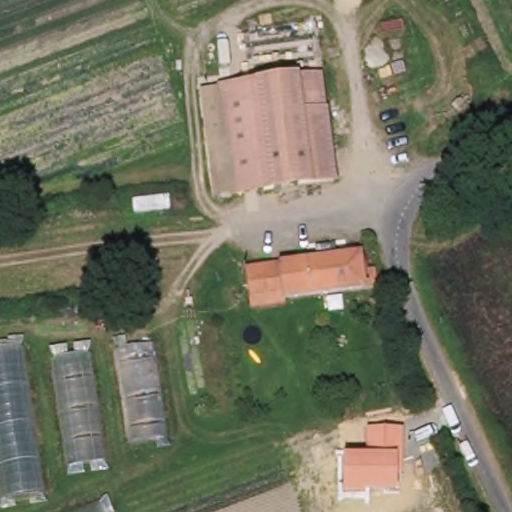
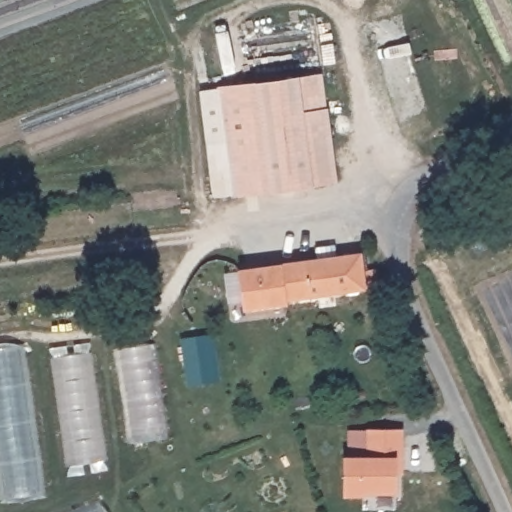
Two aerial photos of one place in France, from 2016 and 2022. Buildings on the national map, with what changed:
unchanged [(344,182),(237,197),(222,90),(329,75),(344,182)]
unchanged [(341,295),(251,308),(246,272),(321,260),(319,249),(338,246),(341,257),(363,254),(366,269),(374,267),(377,289),(341,295)]
unchanged [(172,436),(134,442),(121,348),(155,342),(172,436)]
unchanged [(5,497),(0,460),(0,350),(28,346),(46,490),(5,497)]
unchanged [(108,461),(74,466),(57,357),(93,352),(108,461)]
unchanged [(337,485),(342,485),(342,456),(366,455),(367,430),(402,430),(402,473),(394,473),(395,491),(368,492),(368,500),(337,500),(337,485)]
unchanged [(105,512),(73,512),(102,501),(105,512)]

